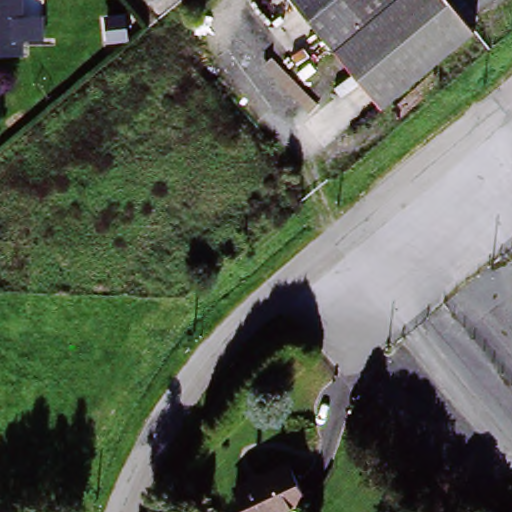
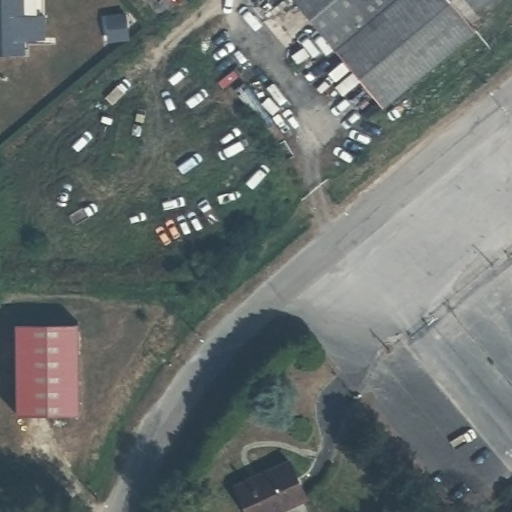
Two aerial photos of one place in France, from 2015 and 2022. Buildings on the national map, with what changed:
unchanged [(21,0),(23,55),(0,55),(0,0),(21,0)]
unchanged [(288,0),(291,0),(290,2),(288,0)]
unchanged [(290,2),(291,0),(416,0),(340,62),(290,2)]
unchanged [(445,0),(481,44),(388,120),(340,62),(416,0),(445,0)]
new [(19,321),(81,323),(79,412),(17,411),(19,321)]
unchanged [(236,492),(291,469),(306,506),(292,512),(244,512),(236,492)]
unchanged [(512,505),(512,512),(504,512),(512,505)]

